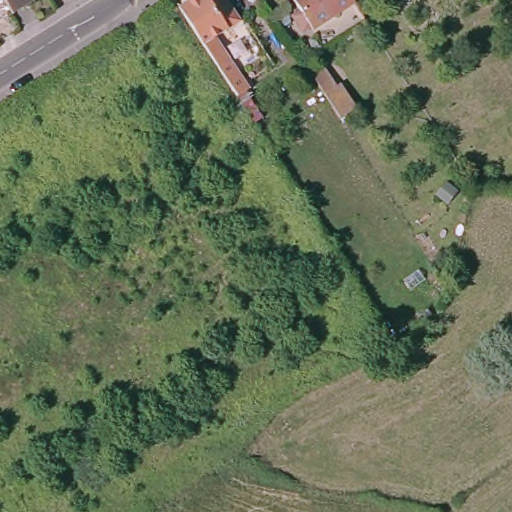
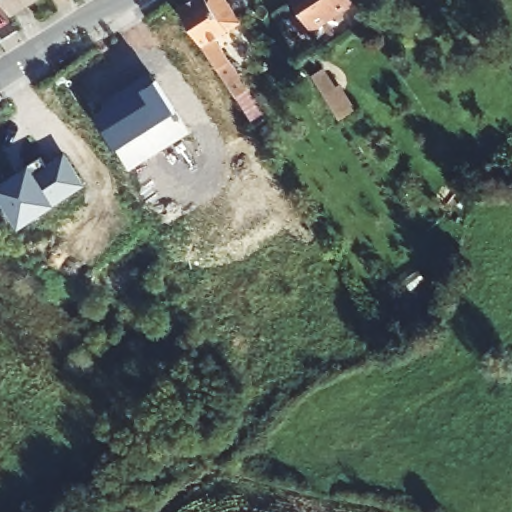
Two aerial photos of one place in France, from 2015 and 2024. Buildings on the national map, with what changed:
unchanged [(23,0),(7,10),(1,0),(23,0)]
unchanged [(180,0),(222,0),(233,19),(209,34),(239,83),(242,87),(229,95),(172,5),(180,0)]
unchanged [(299,12),(291,0),(352,0),(354,3),(312,31),(310,29),(302,35),(290,17),(299,12)]
unchanged [(395,0),(405,0),(397,5),(395,0)]
unchanged [(248,59),(262,50),(270,64),(256,72),(248,59)]
unchanged [(355,110),(340,120),(325,96),(312,76),(323,69),(335,89),(339,86),(355,110)]
new [(115,150),(90,110),(151,71),(177,112),(115,150)]
new [(57,202),(20,227),(0,197),(0,183),(31,162),(37,171),(66,151),(86,183),(57,202)]

